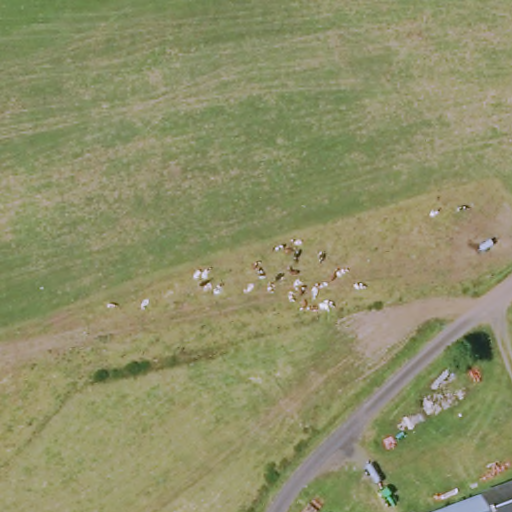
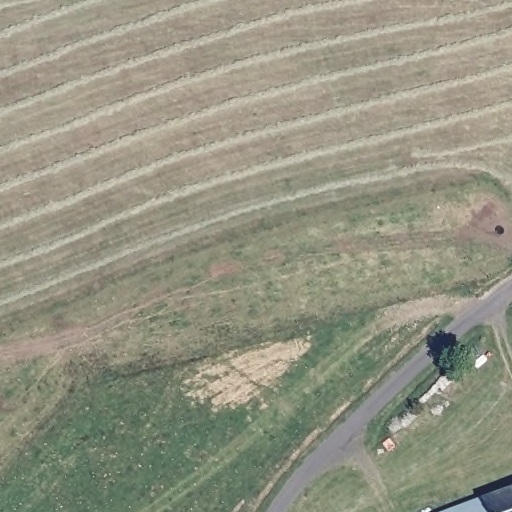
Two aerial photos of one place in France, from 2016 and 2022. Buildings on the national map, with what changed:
unchanged [(512,492),(512,512),(457,512),(512,492)]

